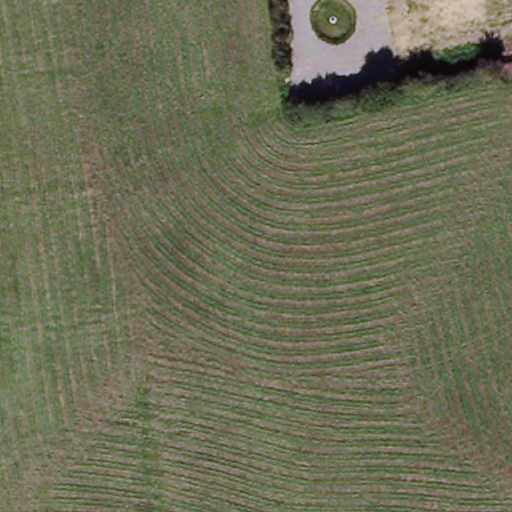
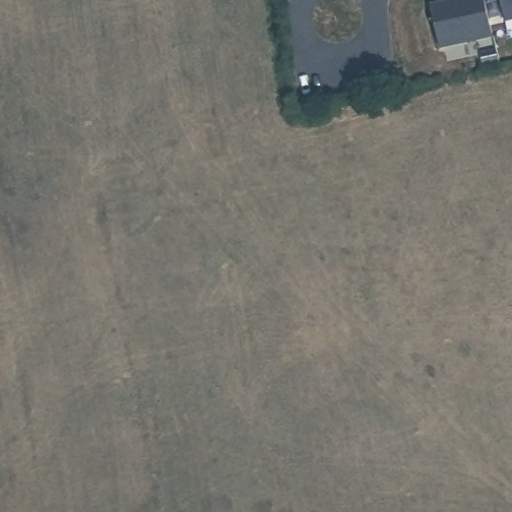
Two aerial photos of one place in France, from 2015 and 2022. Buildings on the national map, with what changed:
new [(440,49),(429,5),(452,0),(484,0),(493,36),(440,49)]
new [(503,23),(498,0),(512,0),(512,21),(503,23)]

